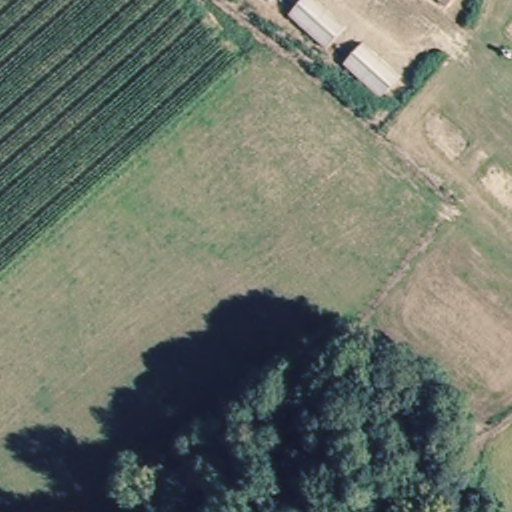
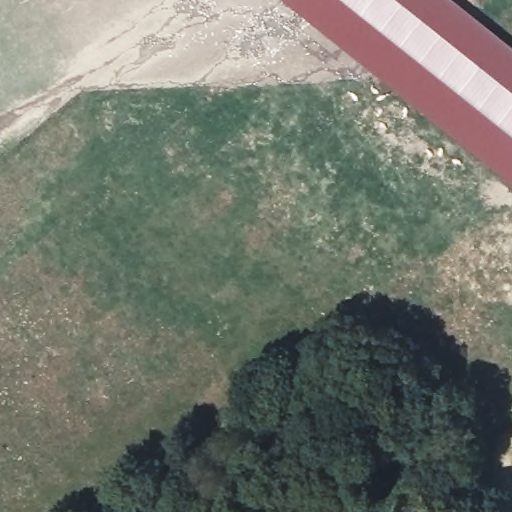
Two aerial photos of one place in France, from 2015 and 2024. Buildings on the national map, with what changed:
demolished [(266,7),(256,0),(272,0),(266,7)]
new [(512,185),(282,0),(338,0),(512,138),(512,185)]
demolished [(345,25),(328,52),(287,19),(304,0),(311,0),(345,25)]
new [(512,49),(512,138),(338,0),(451,0),(512,49)]
demolished [(450,4),(445,0),(453,0),(450,4)]
demolished [(405,76),(382,101),(345,67),(370,43),(405,76)]

